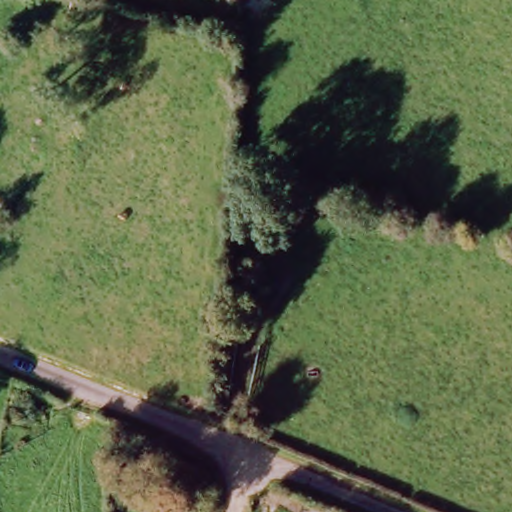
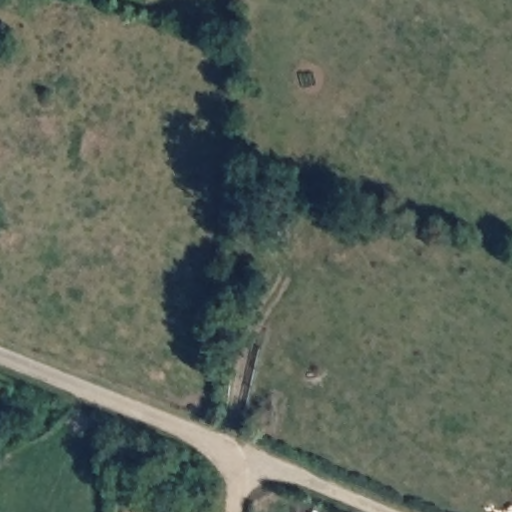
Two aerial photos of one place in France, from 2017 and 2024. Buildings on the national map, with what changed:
unchanged [(180,487),(185,468),(204,474),(210,490),(209,495),(180,487)]

